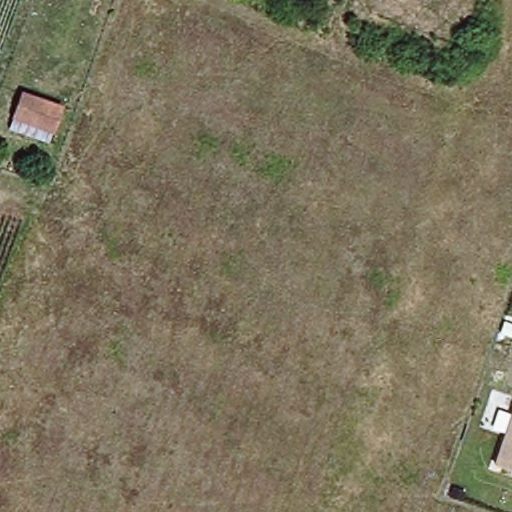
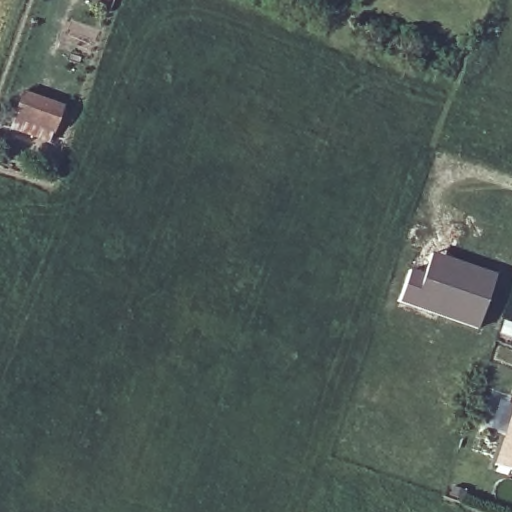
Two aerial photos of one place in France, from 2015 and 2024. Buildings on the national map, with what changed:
unchanged [(59,105),(45,143),(7,129),(22,91),(59,105)]
new [(425,271),(427,267),(432,250),(497,274),(491,290),(478,325),(400,297),(411,266),(425,271)]
unchanged [(493,464),(512,409),(512,471),(493,464)]

